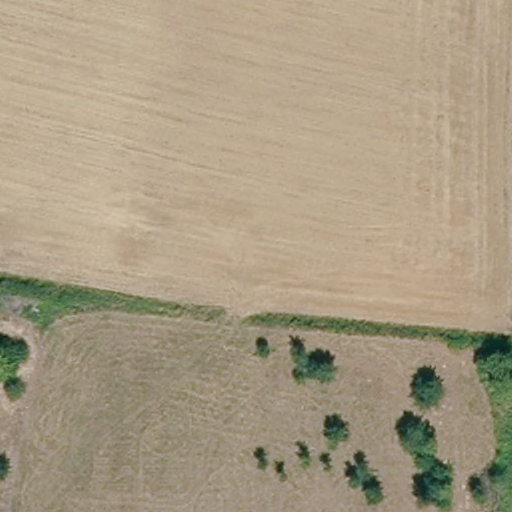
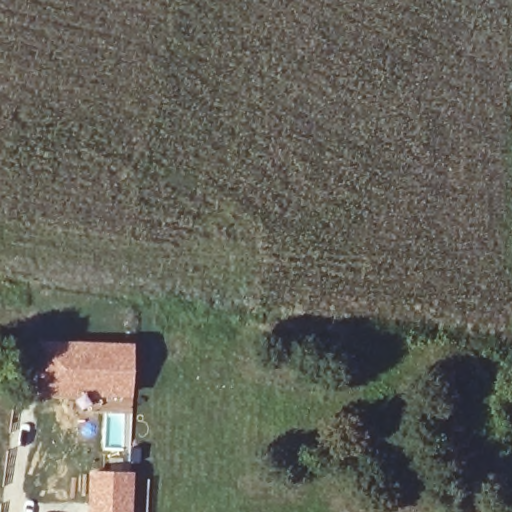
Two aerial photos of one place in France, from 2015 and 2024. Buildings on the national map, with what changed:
new [(36,339),(78,339),(134,341),(132,407),(122,407),(122,401),(84,398),(34,398),(36,339)]
new [(87,468),(134,470),(132,512),(86,512),(87,468)]

